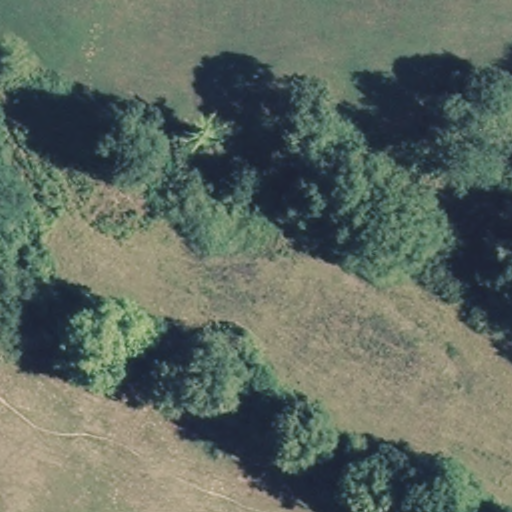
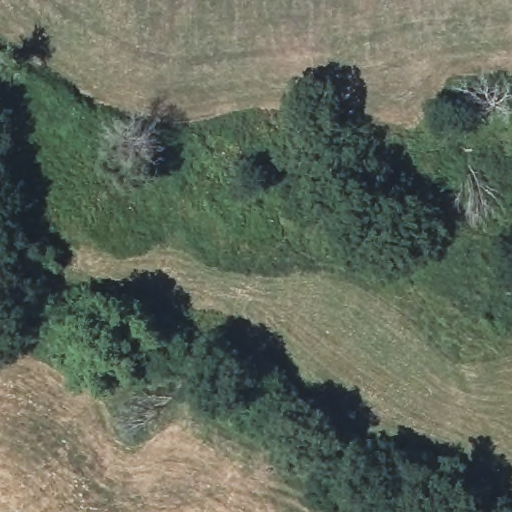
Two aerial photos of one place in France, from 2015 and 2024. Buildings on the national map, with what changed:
unchanged [(333,199),(321,224),(285,207),(298,181),(333,199)]

